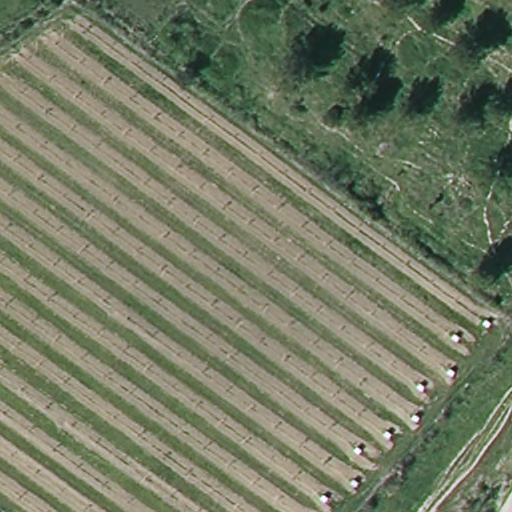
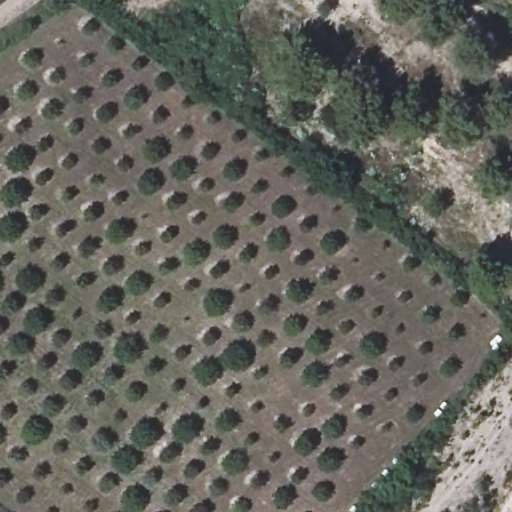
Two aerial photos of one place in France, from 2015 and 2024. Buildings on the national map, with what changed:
[]

